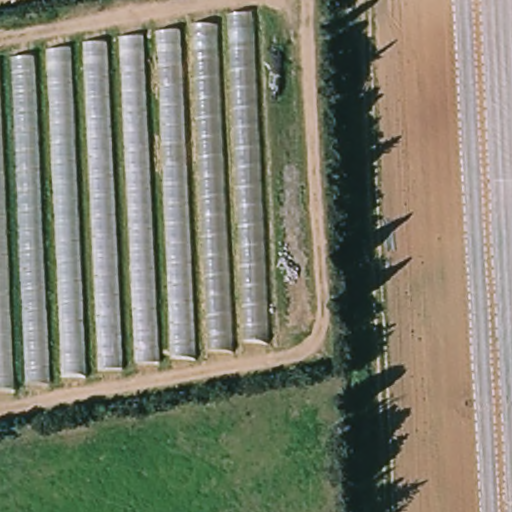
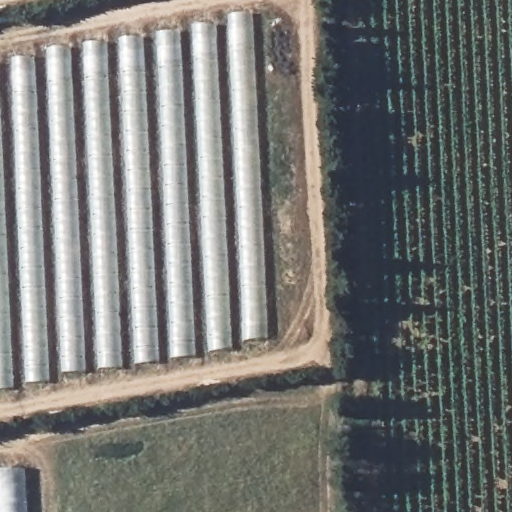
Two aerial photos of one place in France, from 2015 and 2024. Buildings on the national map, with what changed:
unchanged [(0,55),(286,9),(305,334),(0,391),(0,55)]
new [(27,512),(0,512),(0,471),(24,469),(27,512)]

